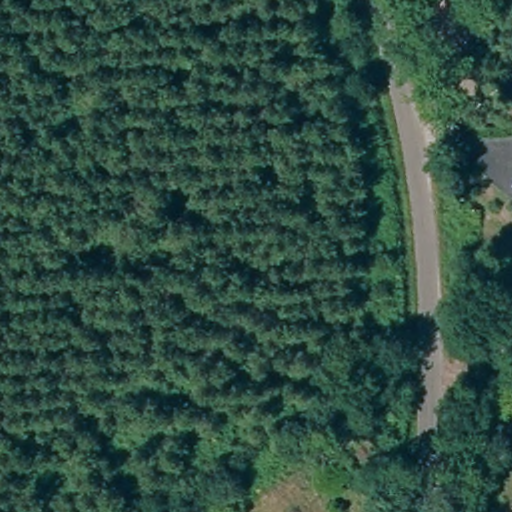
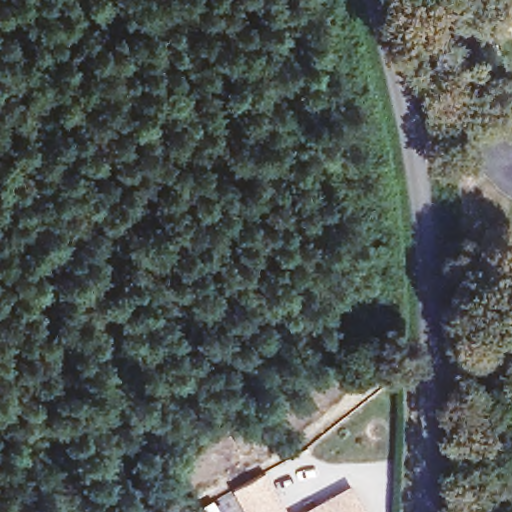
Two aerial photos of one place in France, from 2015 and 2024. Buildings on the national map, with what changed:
unchanged [(459,0),(459,11),(431,13),(431,0),(459,0)]
new [(230,490),(262,471),(287,512),(243,512),(230,490)]
new [(348,484),(364,512),(299,512),(348,484)]

